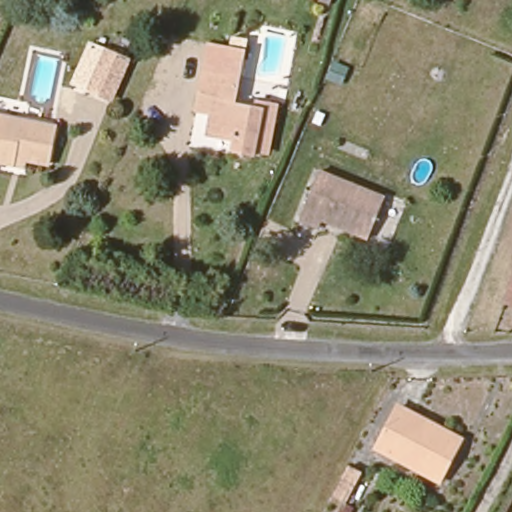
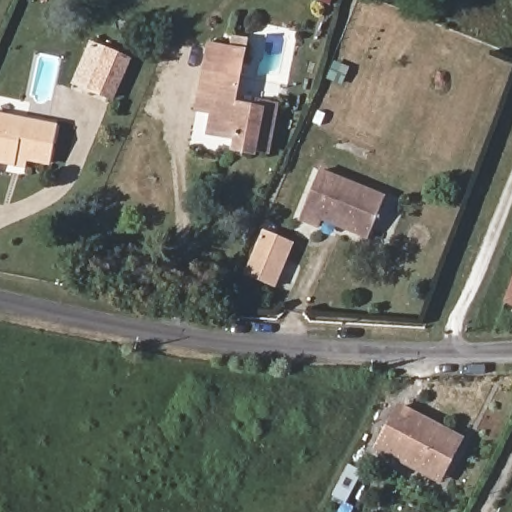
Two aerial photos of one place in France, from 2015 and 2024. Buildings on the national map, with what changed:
unchanged [(204,86),(212,37),(249,44),(239,99),(257,102),(259,96),(278,101),(271,146),(256,144),(255,147),(234,143),(234,129),(212,126),(216,105),(200,102),(204,86)]
unchanged [(90,87),(105,49),(127,57),(112,96),(90,87)]
unchanged [(21,156),(20,162),(0,159),(0,112),(26,117),(61,124),(54,162),(32,157),(21,156)]
unchanged [(323,216),(320,226),(299,218),(317,169),(383,191),(368,235),(323,216)]
new [(262,230),(295,243),(277,288),(244,275),(262,230)]
unchanged [(503,286),(512,265),(512,289),(503,286)]
unchanged [(391,458),(377,450),(402,406),(462,441),(442,476),(439,483),(391,458)]
unchanged [(367,485),(352,512),(347,512),(337,507),(353,477),(367,485)]

